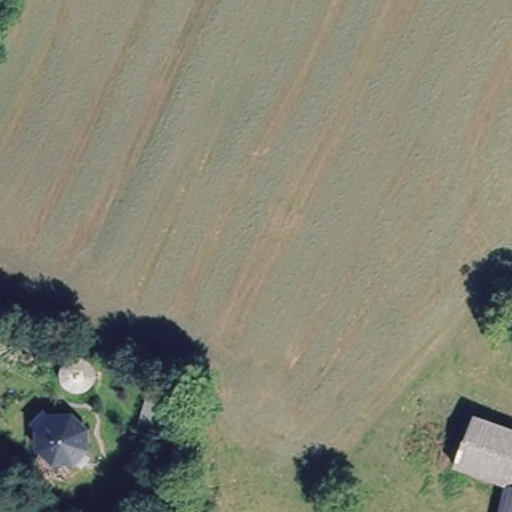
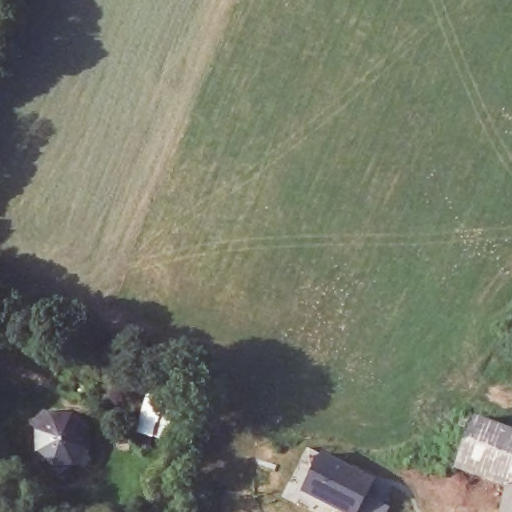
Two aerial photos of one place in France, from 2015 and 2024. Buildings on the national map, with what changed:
unchanged [(147,390),(177,396),(169,437),(138,432),(147,390)]
unchanged [(512,424),(512,512),(493,512),(501,485),(444,462),(449,447),(465,407),(512,424)]
unchanged [(80,438),(80,455),(68,467),(52,467),(40,454),(40,437),(32,429),(44,417),(52,426),(69,426),(80,438)]
new [(344,512),(301,490),(320,453),(373,481),(365,497),(383,507),(381,512),(344,512)]

